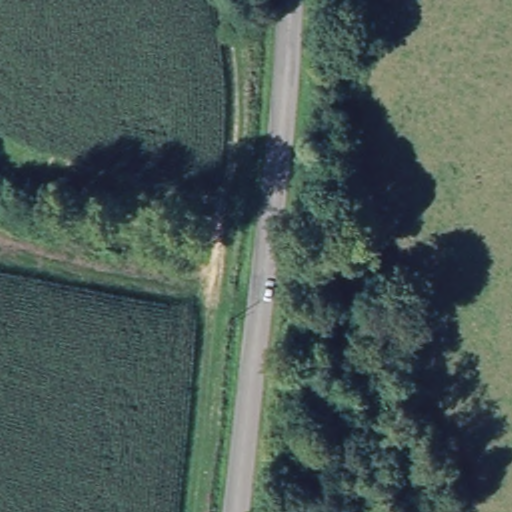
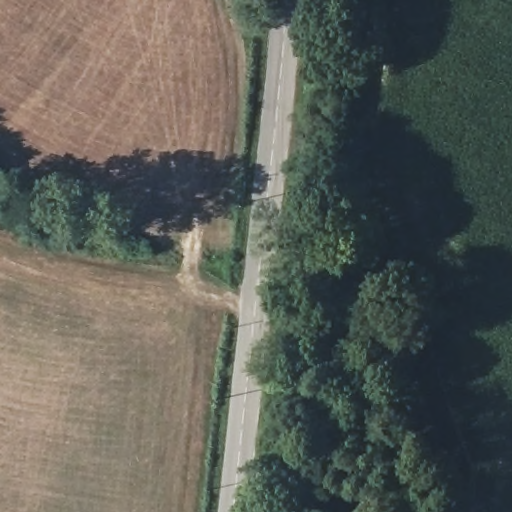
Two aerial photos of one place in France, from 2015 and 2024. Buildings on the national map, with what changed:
[]

